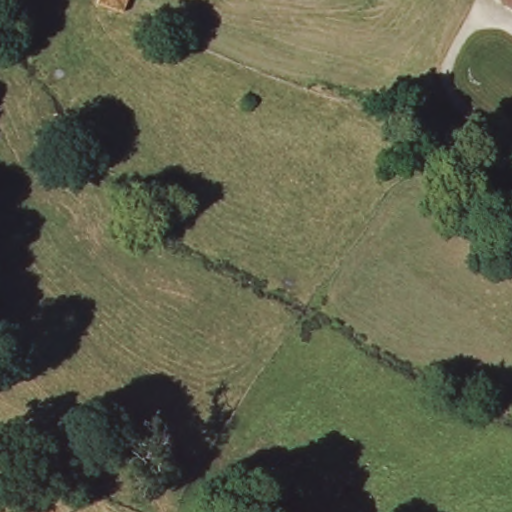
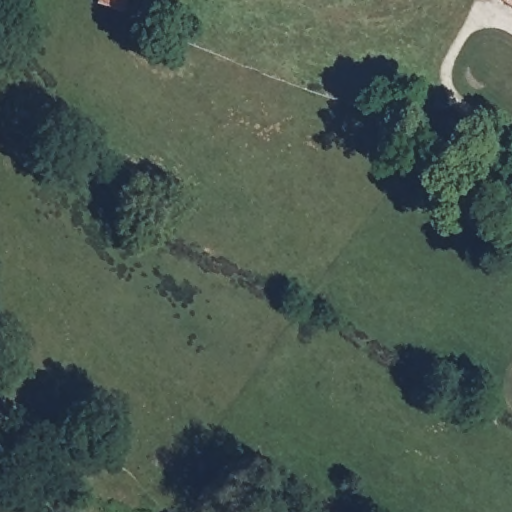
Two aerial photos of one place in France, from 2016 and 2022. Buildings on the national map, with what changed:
unchanged [(110,8),(96,4),(98,0),(126,0),(122,12),(110,8)]
unchanged [(512,4),(507,0),(512,0),(512,4)]

